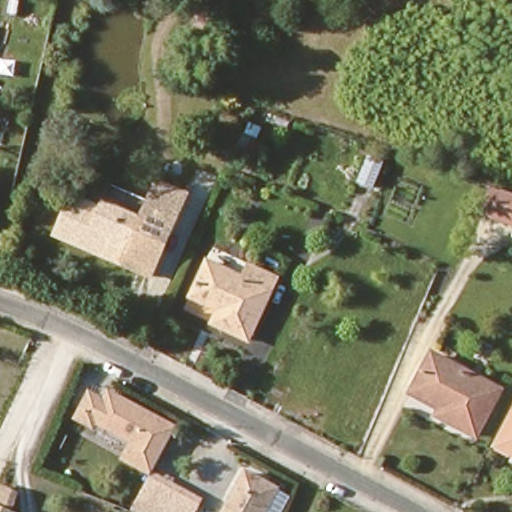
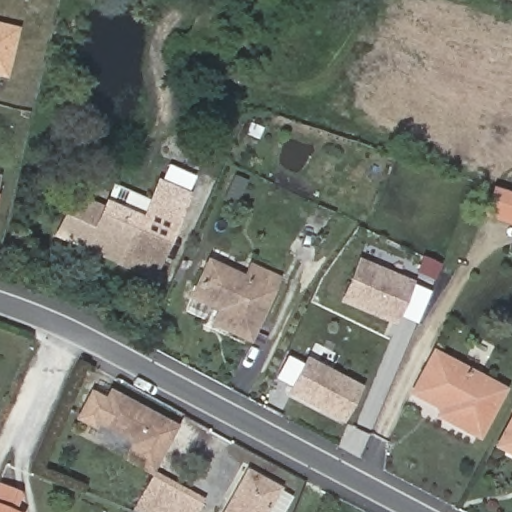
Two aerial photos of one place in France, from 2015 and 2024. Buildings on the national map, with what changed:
unchanged [(209,57),(185,48),(200,11),(224,19),(209,57)]
new [(17,29),(5,78),(0,77),(0,25),(17,29)]
unchanged [(55,239),(71,200),(101,212),(111,190),(147,205),(155,187),(185,201),(179,218),(151,281),(55,239)]
unchanged [(491,190),(512,197),(512,225),(483,216),(491,190)]
new [(338,302),(357,258),(412,281),(394,326),(338,302)]
unchanged [(283,280),(252,342),(217,324),(224,309),(196,295),(212,262),(247,280),(254,265),(283,280)]
unchanged [(500,392),(476,437),(446,420),(449,414),(412,393),(433,355),(500,392)]
new [(286,394),(305,357),(361,386),(343,424),(286,394)]
unchanged [(151,475),(120,459),(129,443),(95,425),(91,430),(75,420),(90,391),(104,398),(108,389),(175,425),(151,475)]
unchanged [(512,421),(497,448),(490,445),(512,404),(512,421)]
unchanged [(512,421),(512,456),(497,448),(512,421)]
unchanged [(242,512),(224,512),(244,475),(255,482),(242,512)]
unchanged [(150,480),(200,505),(197,512),(137,512),(134,510),(150,480)]
unchanged [(275,492),(264,512),(242,512),(255,482),(275,492)]
unchanged [(14,490),(6,508),(14,512),(0,512),(0,483),(14,490)]

